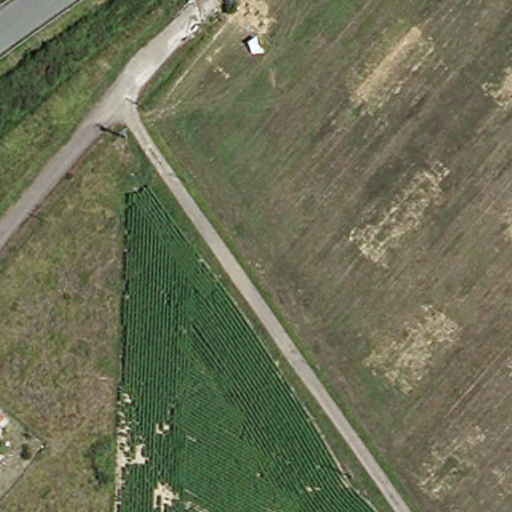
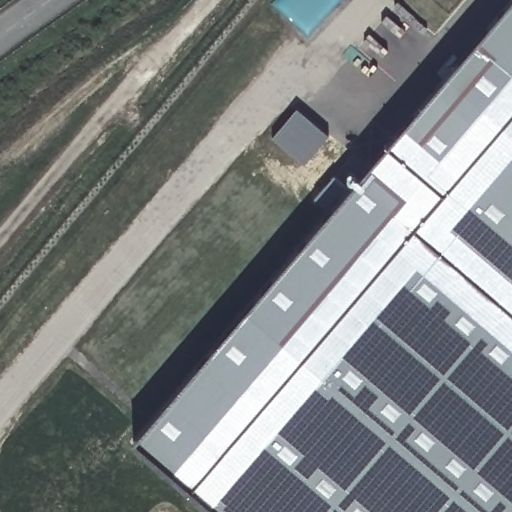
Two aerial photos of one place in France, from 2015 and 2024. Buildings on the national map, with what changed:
new [(137,440),(509,0),(512,0),(512,512),(221,512),(137,440)]
demolished [(5,421),(0,428),(0,416),(5,421)]

